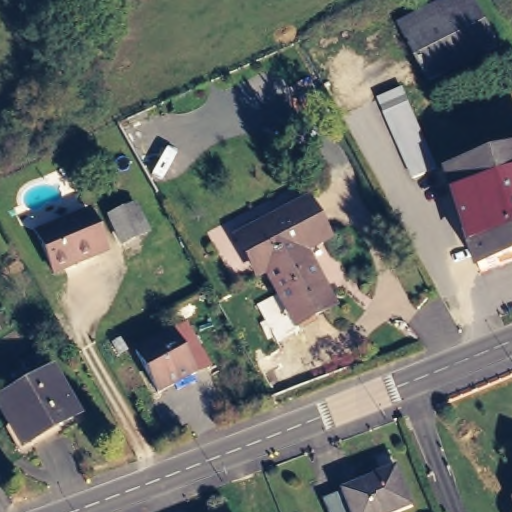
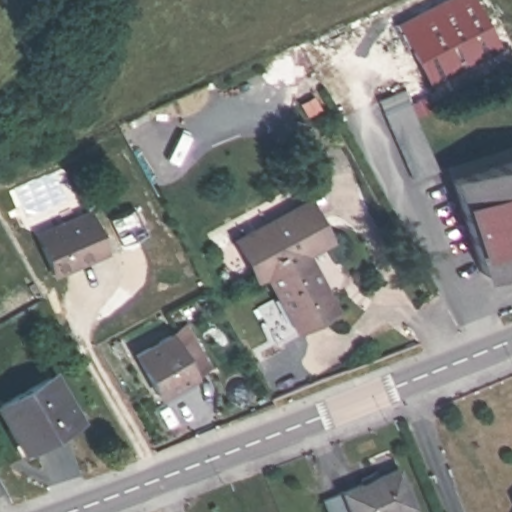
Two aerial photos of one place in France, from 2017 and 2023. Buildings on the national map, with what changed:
unchanged [(494,49),(429,82),(406,39),(472,7),(494,49)]
unchanged [(408,181),(379,100),(399,93),(429,174),(408,181)]
unchanged [(452,179),(512,161),(512,263),(479,273),(452,179)]
unchanged [(300,317),(274,262),(261,266),(246,232),(316,198),(333,232),(307,246),(335,302),(300,317)]
unchanged [(89,215),(103,247),(90,253),(93,260),(54,276),(35,235),(89,215)]
unchanged [(142,240),(119,249),(111,225),(133,215),(142,240)]
unchanged [(157,392),(135,352),(174,330),(194,370),(157,392)]
unchanged [(30,452),(9,411),(59,385),(83,426),(30,452)]
unchanged [(346,489),(402,468),(414,503),(387,512),(335,512),(328,496),(346,489)]

